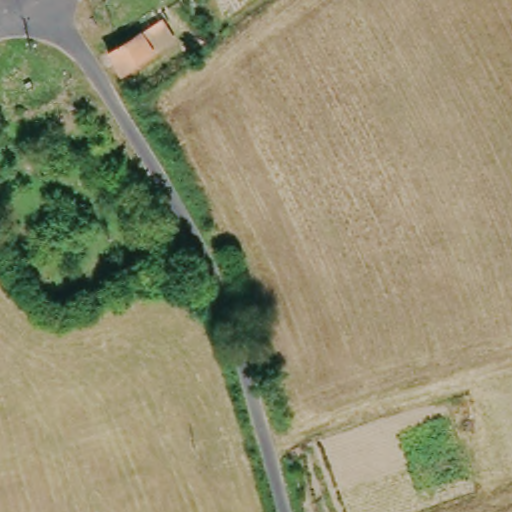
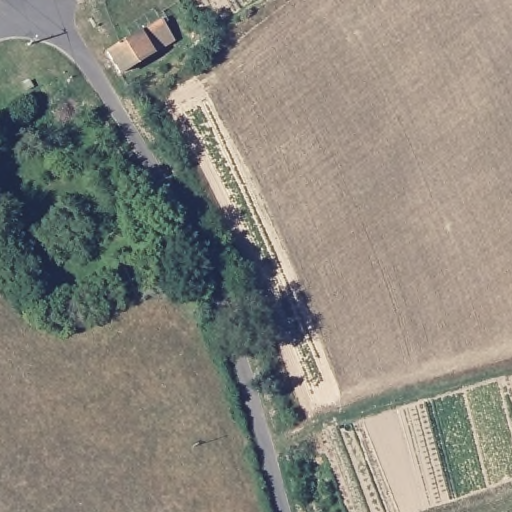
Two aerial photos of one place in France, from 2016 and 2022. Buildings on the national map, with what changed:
unchanged [(162,41),(117,76),(102,57),(148,24),(162,41)]

